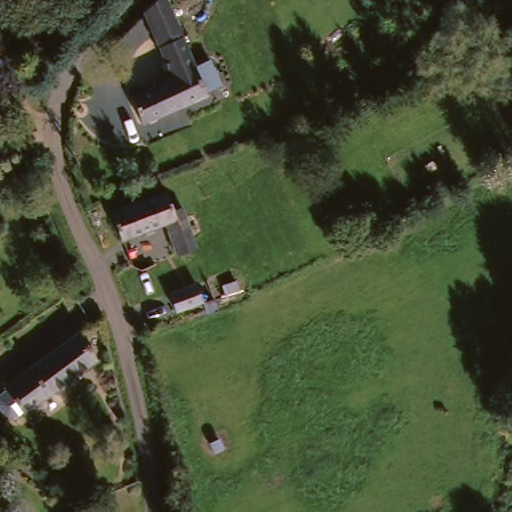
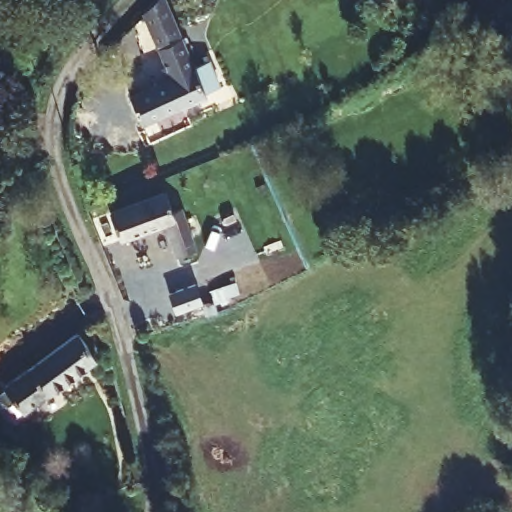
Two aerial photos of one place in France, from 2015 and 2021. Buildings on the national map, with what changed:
unchanged [(209,91),(151,116),(136,88),(176,73),(149,7),(157,0),(171,0),(196,59),(202,56),(210,52),(224,85),(221,86),(209,91)]
unchanged [(176,209),(181,207),(194,245),(176,250),(166,225),(123,238),(114,208),(168,190),(176,209)]
unchanged [(178,306),(171,285),(199,275),(206,298),(178,306)]
unchanged [(13,382),(86,328),(106,357),(89,370),(33,412),(28,404),(13,382)]

